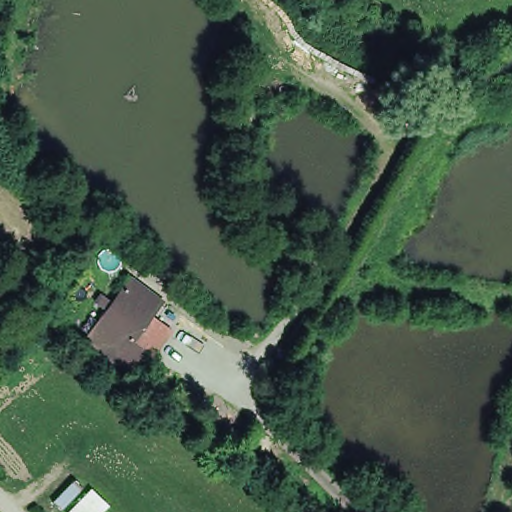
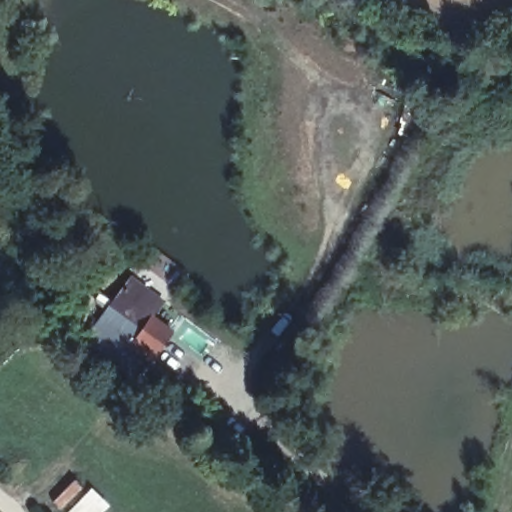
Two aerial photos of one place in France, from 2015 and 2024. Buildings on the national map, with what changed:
unchanged [(101,317),(118,290),(153,317),(136,342),(101,317)]
unchanged [(109,503),(100,512),(69,512),(68,510),(91,486),(109,503)]

